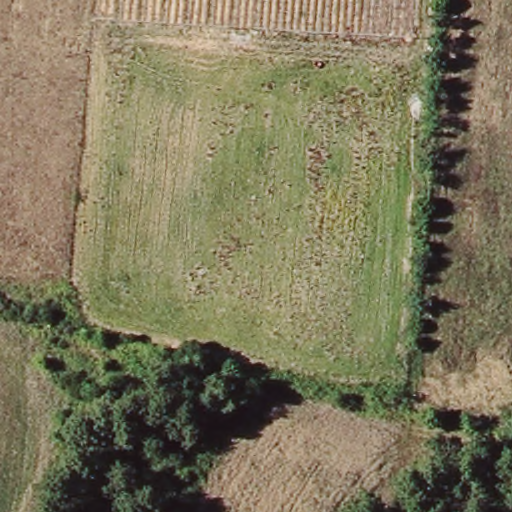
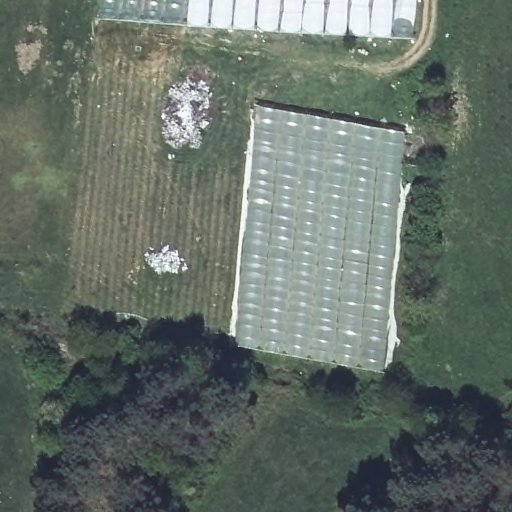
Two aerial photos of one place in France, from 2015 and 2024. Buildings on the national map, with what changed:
new [(350,0),(347,35),(257,30),(259,0),(350,0)]
new [(253,105),(405,131),(384,373),(231,346),(253,105)]

